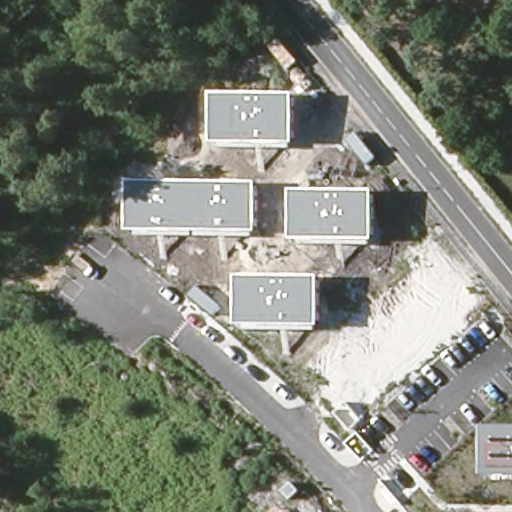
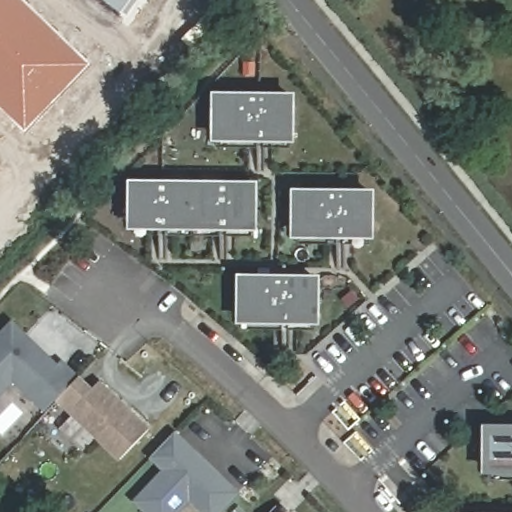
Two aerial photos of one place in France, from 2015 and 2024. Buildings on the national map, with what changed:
new [(26,133),(0,108),(0,0),(27,0),(94,64),(26,133)]
unchanged [(296,143),(214,141),(215,92),(296,93),(296,143)]
new [(0,170),(0,163),(3,166),(0,170)]
unchanged [(259,230),(131,229),(133,179),(260,180),(259,230)]
unchanged [(376,190),(376,238),(294,238),(293,189),(376,190)]
unchanged [(321,275),(321,324),(237,323),(239,275),(321,275)]
new [(57,401),(46,411),(14,383),(0,398),(0,335),(13,321),(59,363),(63,359),(81,375),(57,401)]
new [(95,388),(101,380),(151,427),(119,461),(57,401),(81,375),(95,388)]
unchanged [(512,426),(512,474),(482,474),(483,425),(512,426)]
new [(203,512),(192,501),(183,512),(145,512),(133,500),(162,470),(151,459),(176,431),(240,493),(224,512),(203,512)]
unchanged [(289,511),(290,512),(270,512),(275,506),(289,511)]

